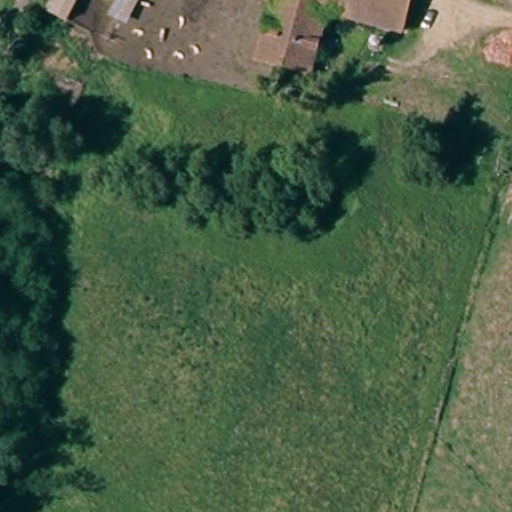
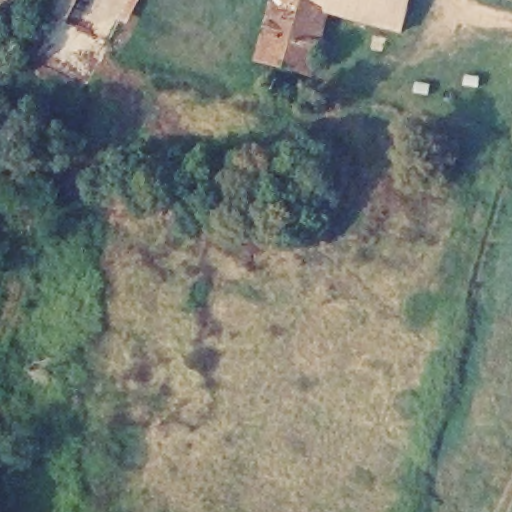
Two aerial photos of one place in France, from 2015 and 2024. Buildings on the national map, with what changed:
unchanged [(80,24),(79,23),(47,7),(50,0),(91,0),(80,24)]
unchanged [(120,39),(106,33),(122,0),(139,0),(120,39)]
unchanged [(400,30),(326,11),(308,76),(257,61),(274,0),(408,0),(400,30)]

